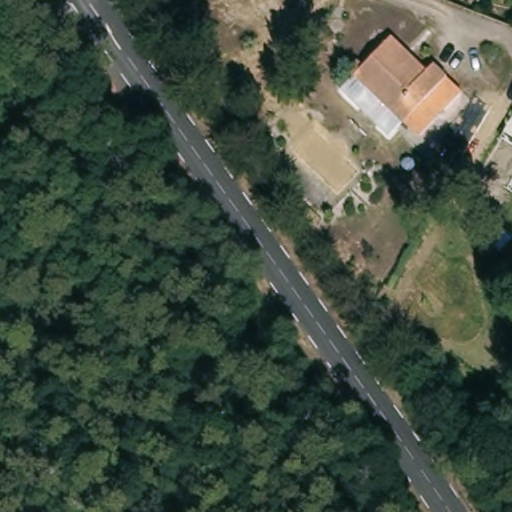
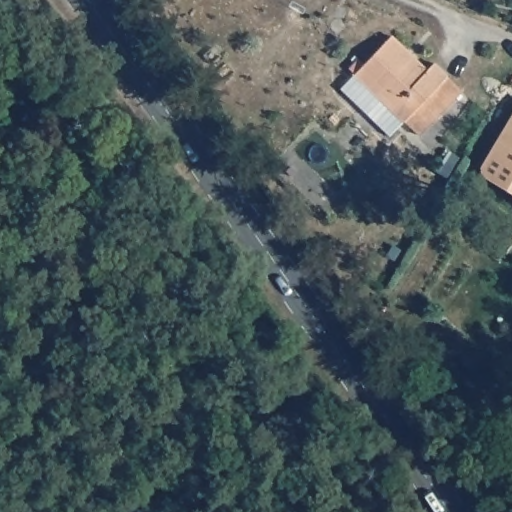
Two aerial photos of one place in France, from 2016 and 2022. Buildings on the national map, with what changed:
unchanged [(398,30),(434,65),(446,54),(459,66),(458,67),(472,82),(426,129),(411,115),(397,129),(348,81),(398,30)]
new [(512,193),(477,172),(512,113),(512,193)]

